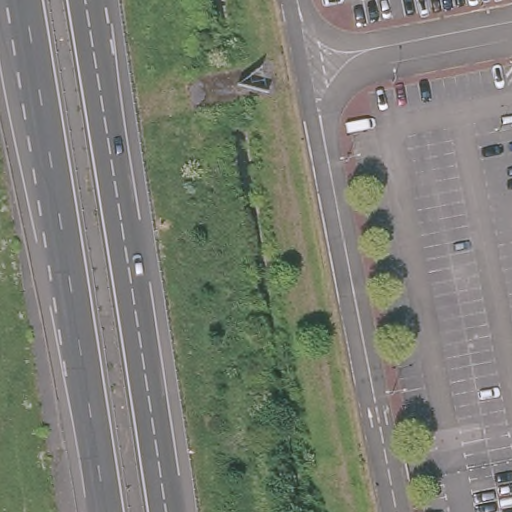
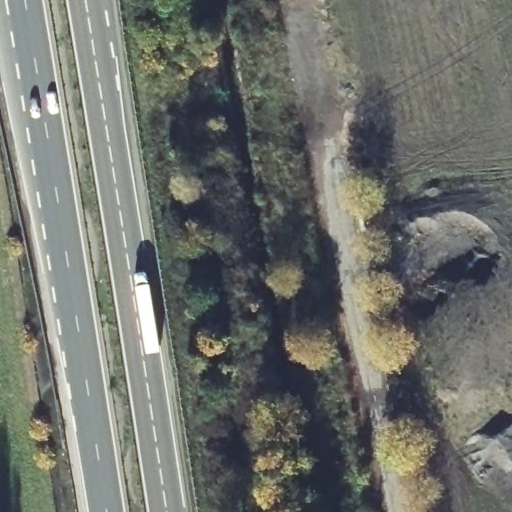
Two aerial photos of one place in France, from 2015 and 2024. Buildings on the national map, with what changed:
[]

